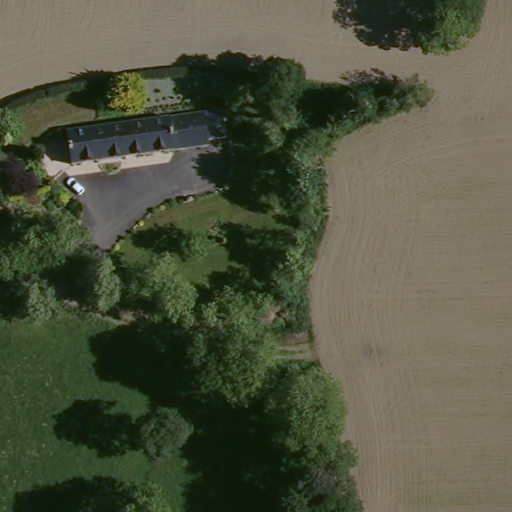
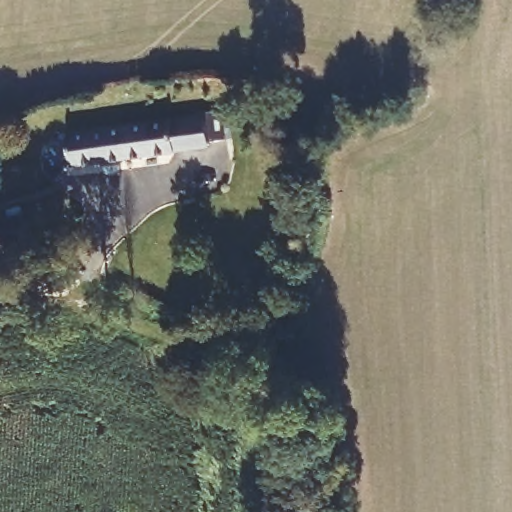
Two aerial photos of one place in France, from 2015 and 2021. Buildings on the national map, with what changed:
unchanged [(62,134),(218,110),(223,141),(206,144),(207,149),(67,170),(62,134)]

